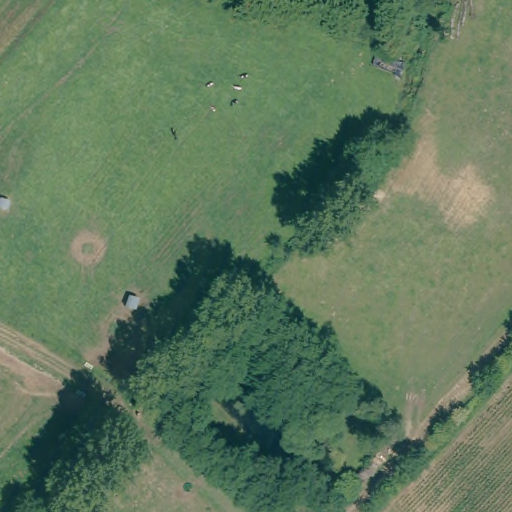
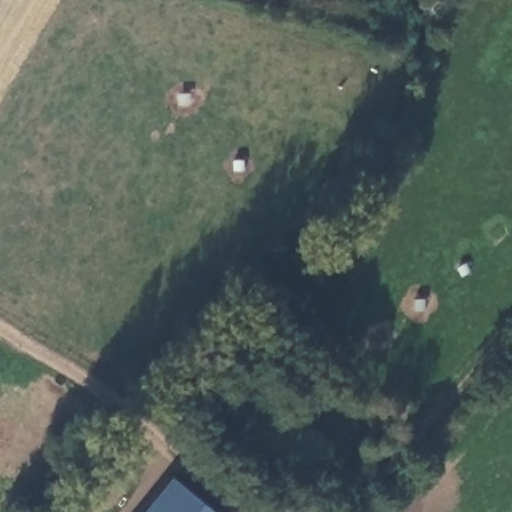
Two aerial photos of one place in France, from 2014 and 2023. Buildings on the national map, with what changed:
new [(169,479),(210,512),(143,512),(169,479)]

